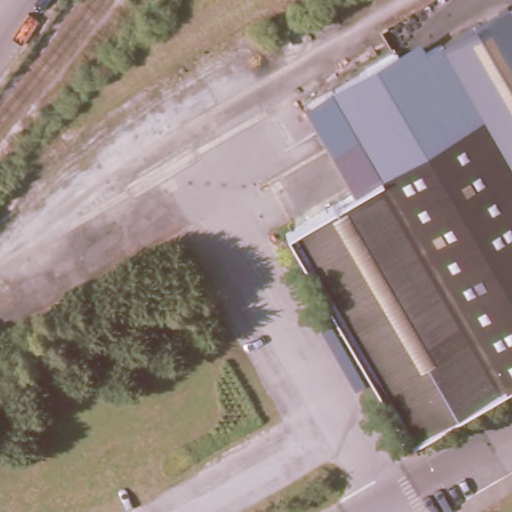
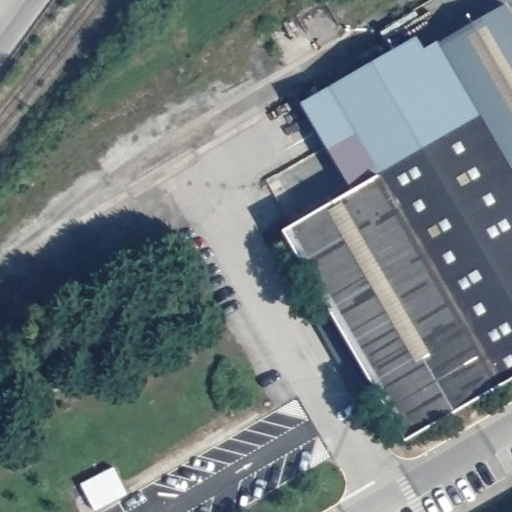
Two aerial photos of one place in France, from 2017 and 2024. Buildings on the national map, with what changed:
unchanged [(512,16),(512,172),(477,109),(436,37),(498,0),(503,0),(512,16)]
unchanged [(296,103),(412,33),(421,47),(436,37),(477,109),(374,171),(345,189),(321,147),(296,103)]
unchanged [(477,109),(512,172),(512,371),(492,382),(402,435),(283,225),(345,189),(374,171),(477,109)]

